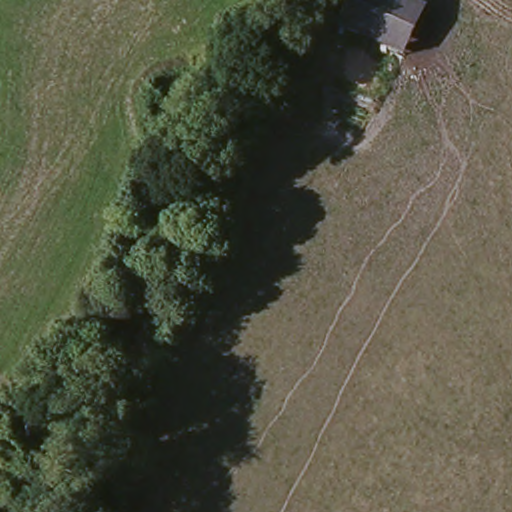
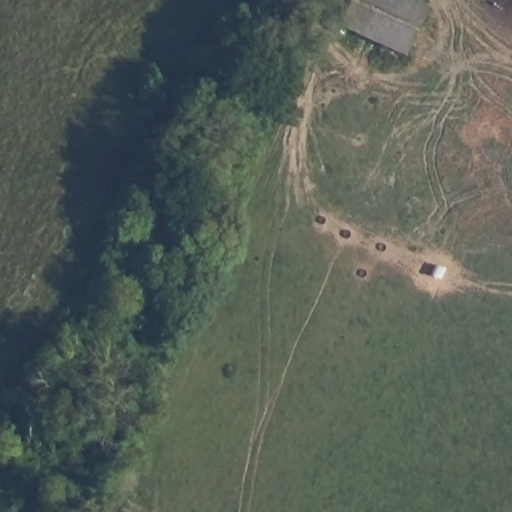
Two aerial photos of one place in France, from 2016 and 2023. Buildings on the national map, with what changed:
unchanged [(427,5),(406,52),(339,21),(349,0),(416,0),(427,5)]

